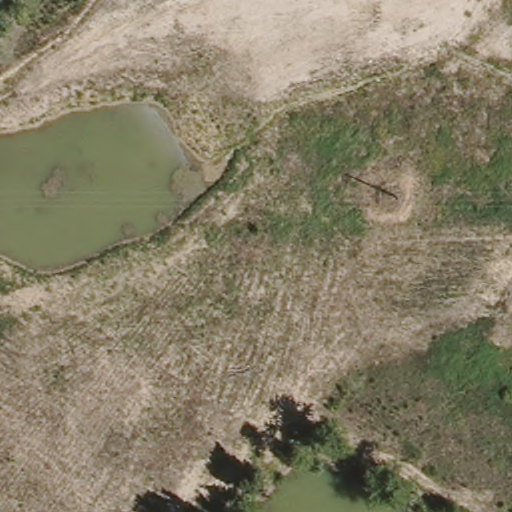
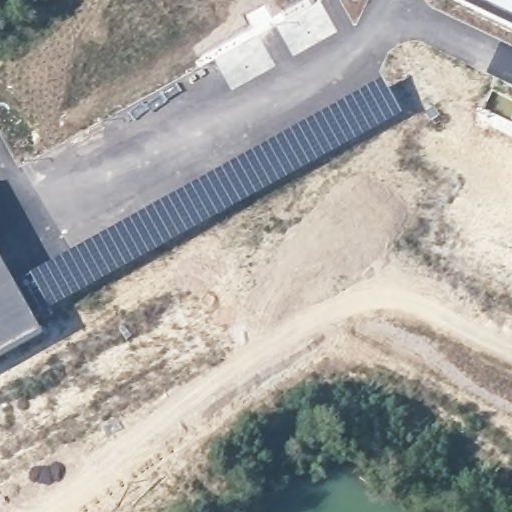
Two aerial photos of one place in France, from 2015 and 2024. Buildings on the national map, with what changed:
new [(478,0),(512,0),(512,16),(478,0)]
new [(383,80),(403,113),(33,318),(15,284),(30,275),(383,80)]
new [(33,318),(42,333),(0,357),(0,258),(15,284),(33,318)]

